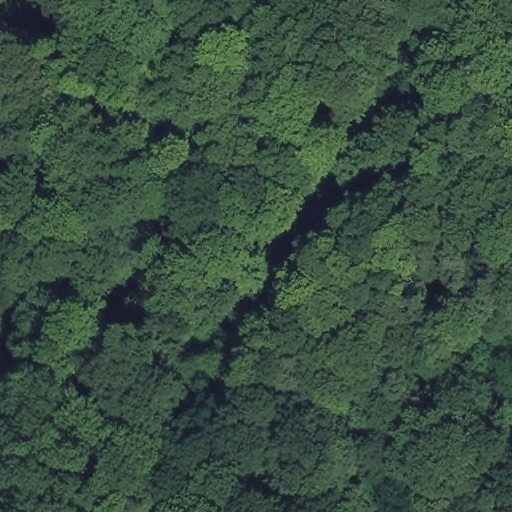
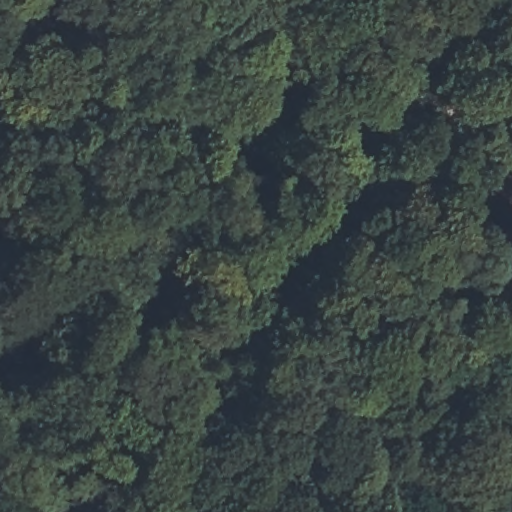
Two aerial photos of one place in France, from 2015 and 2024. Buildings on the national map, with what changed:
[]

